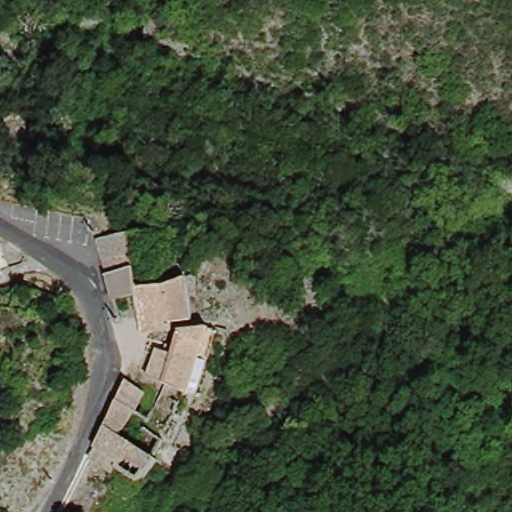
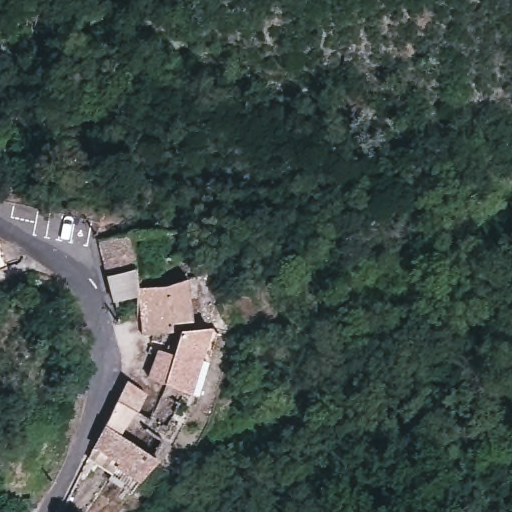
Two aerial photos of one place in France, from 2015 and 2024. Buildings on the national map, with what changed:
unchanged [(103,247),(132,242),(134,266),(109,271),(103,247)]
unchanged [(0,272),(0,257),(8,255),(13,269),(0,272)]
unchanged [(110,319),(110,312),(117,310),(117,304),(111,280),(135,278),(134,266),(152,265),(152,276),(155,300),(199,297),(195,328),(174,328),(173,337),(144,338),(130,338),(115,339),(113,332),(110,319)]
unchanged [(38,294),(58,295),(72,304),(67,316),(35,312),(38,294)]
unchanged [(170,386),(150,378),(157,356),(171,359),(183,340),(208,340),(213,340),(220,340),(217,348),(198,399),(192,397),(170,386)]
unchanged [(120,471),(107,464),(112,458),(102,454),(95,463),(85,458),(90,448),(102,427),(123,390),(138,400),(151,407),(157,411),(147,424),(140,420),(125,441),(152,459),(134,479),(127,487),(113,480),(120,471)]

